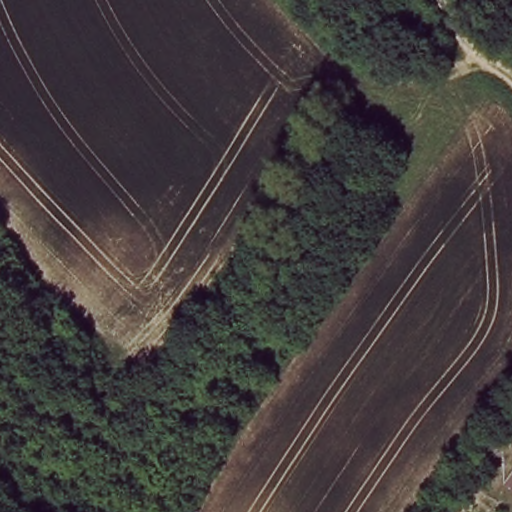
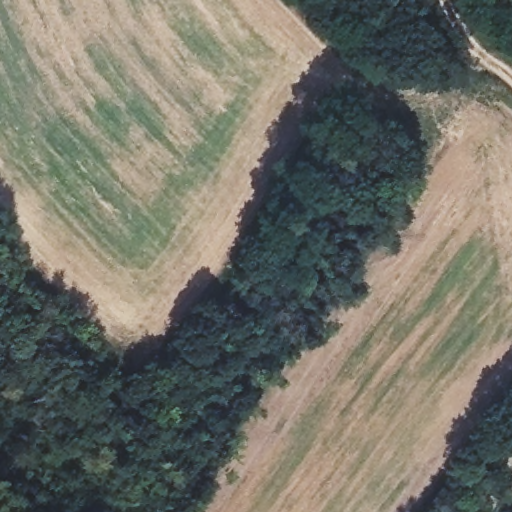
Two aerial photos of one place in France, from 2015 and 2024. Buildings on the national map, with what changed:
unchanged [(512,473),(512,492),(503,485),(512,473)]

